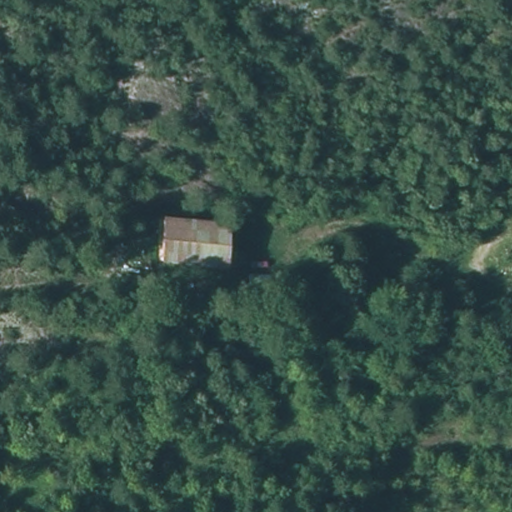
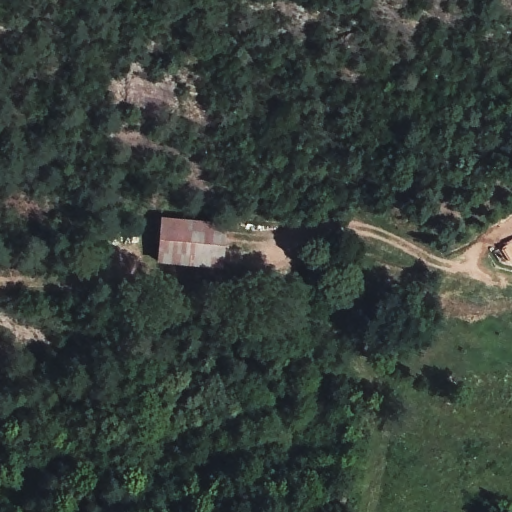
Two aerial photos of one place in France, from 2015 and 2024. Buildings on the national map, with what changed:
unchanged [(160,268),(163,222),(229,228),(227,275),(160,268)]

